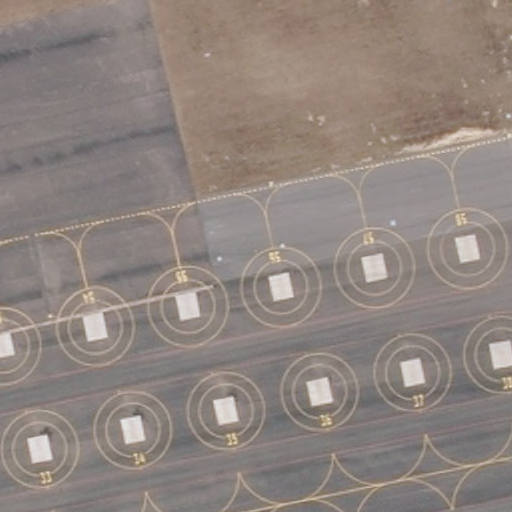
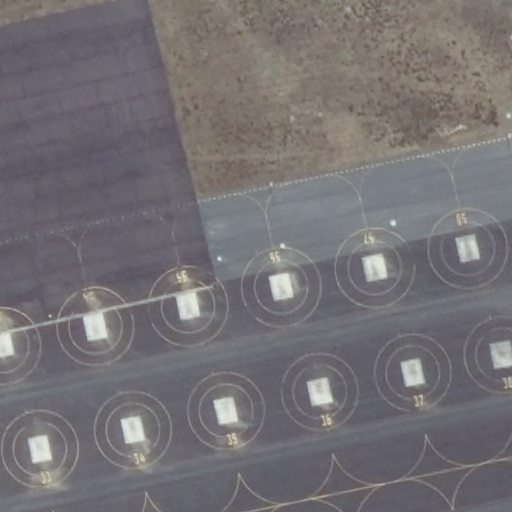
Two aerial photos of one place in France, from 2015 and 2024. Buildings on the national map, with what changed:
[]

